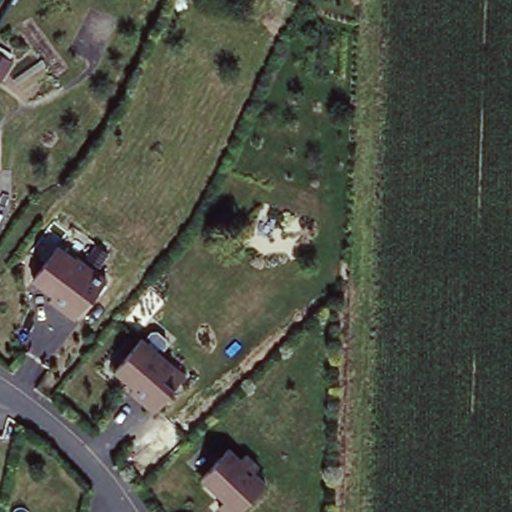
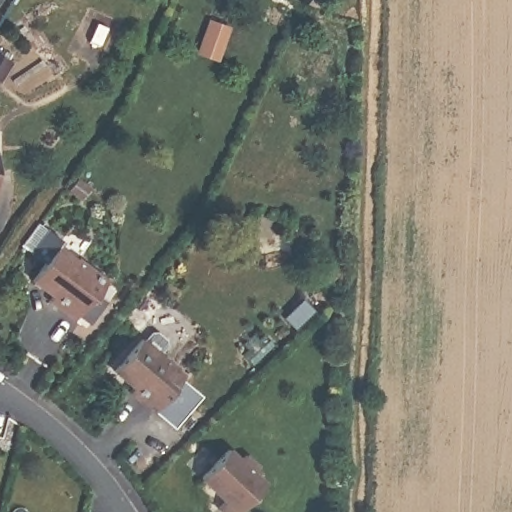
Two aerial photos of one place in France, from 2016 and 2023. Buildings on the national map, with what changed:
new [(211,23),(228,29),(217,60),(200,54),(211,23)]
unchanged [(63,241),(81,254),(79,256),(109,279),(95,298),(93,297),(80,314),(55,295),(59,290),(38,275),(63,241)]
unchanged [(147,333),(179,361),(169,373),(180,382),(160,407),(135,387),(139,382),(120,365),(147,333)]
unchanged [(246,455),(251,449),(264,461),(259,467),(270,478),(239,512),(234,512),(224,502),(230,495),(207,472),(234,443),(246,455)]

